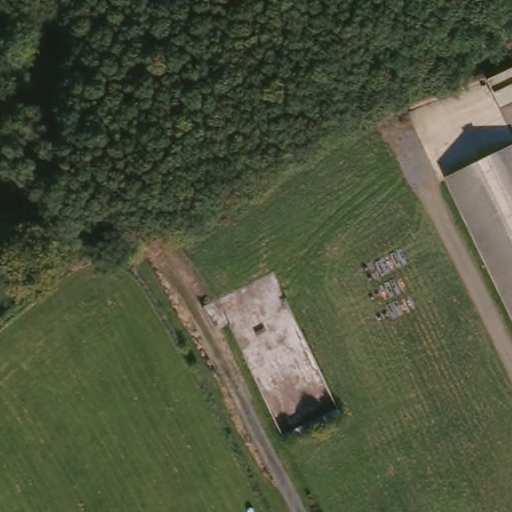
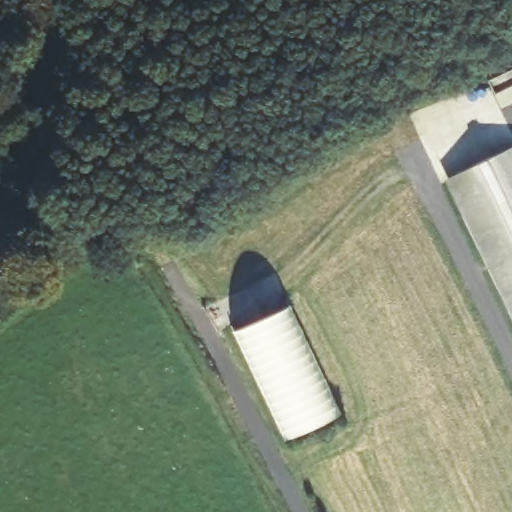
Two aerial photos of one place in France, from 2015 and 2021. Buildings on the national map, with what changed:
unchanged [(447,177),(512,146),(512,312),(448,180),(447,177)]
new [(290,304),(341,411),(285,437),(235,330),(290,304)]

